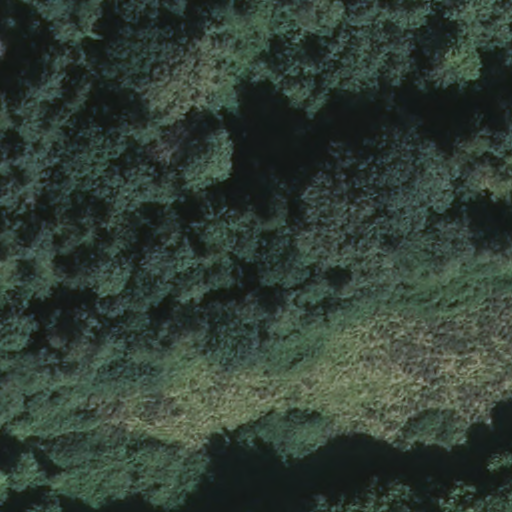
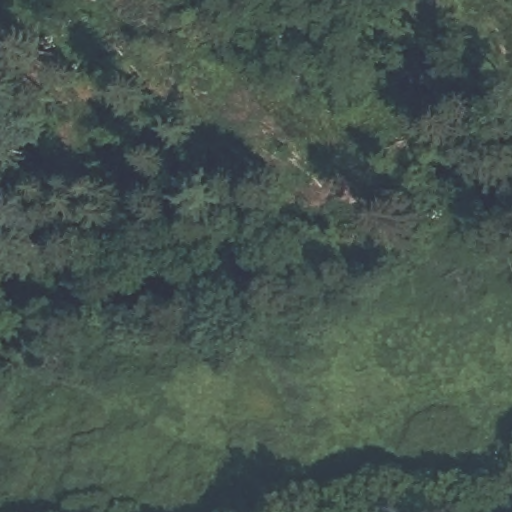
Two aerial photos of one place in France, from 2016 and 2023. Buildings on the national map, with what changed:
unchanged [(14,451),(34,471),(42,462),(51,472),(43,482),(50,489),(33,507),(0,469),(0,464),(14,451)]

